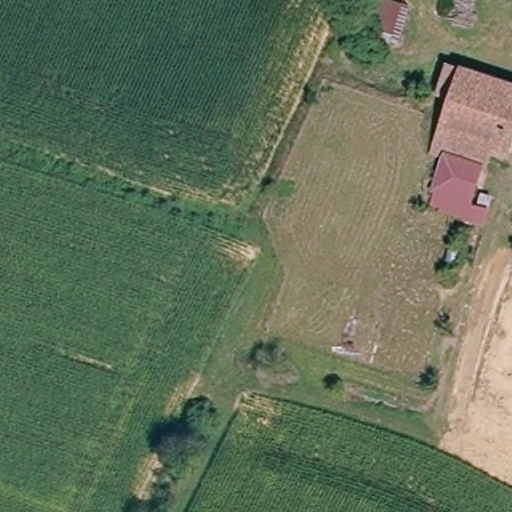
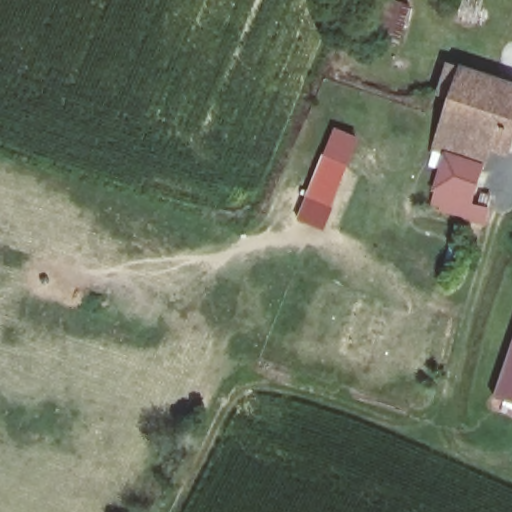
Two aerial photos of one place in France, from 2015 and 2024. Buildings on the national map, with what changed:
unchanged [(397,46),(372,37),(382,0),(393,0),(411,4),(397,46)]
unchanged [(453,150),(442,145),(458,99),(439,91),(443,80),(451,61),(469,67),(512,83),(512,140),(508,155),(494,151),(474,200),(485,205),(479,220),(434,201),(453,150)]
new [(324,230),(297,219),(325,151),(351,162),(324,230)]
new [(512,334),(512,402),(492,395),(512,334)]

